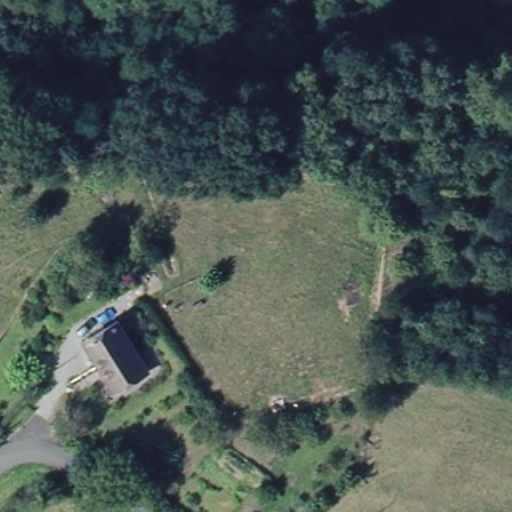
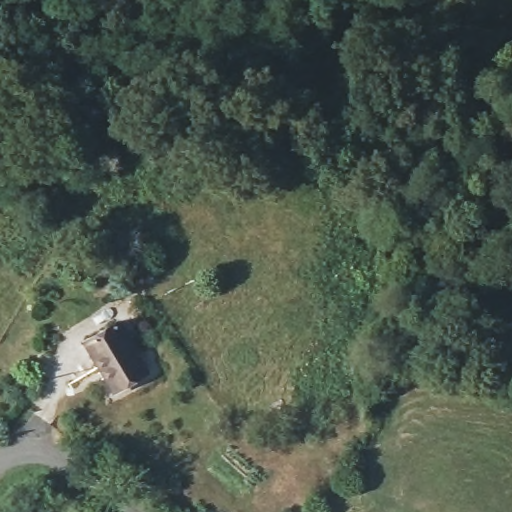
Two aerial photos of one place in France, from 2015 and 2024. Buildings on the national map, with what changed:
unchanged [(121,397),(92,347),(122,329),(152,379),(121,397)]

